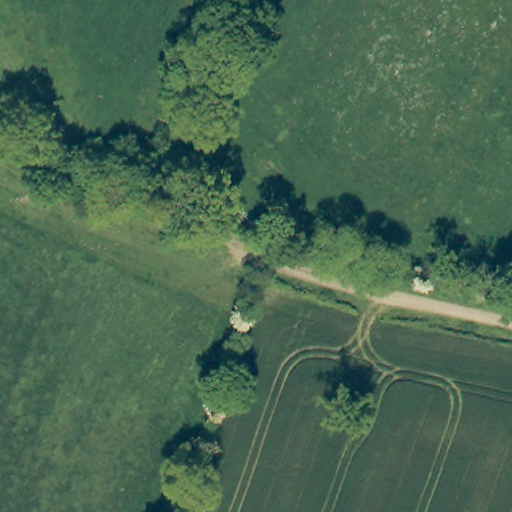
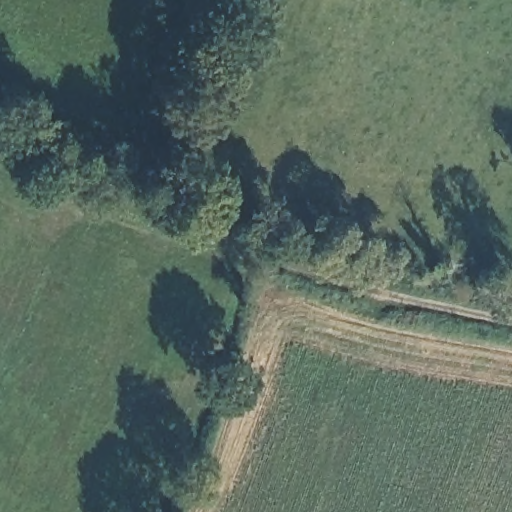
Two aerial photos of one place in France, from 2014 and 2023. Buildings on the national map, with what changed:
[]

